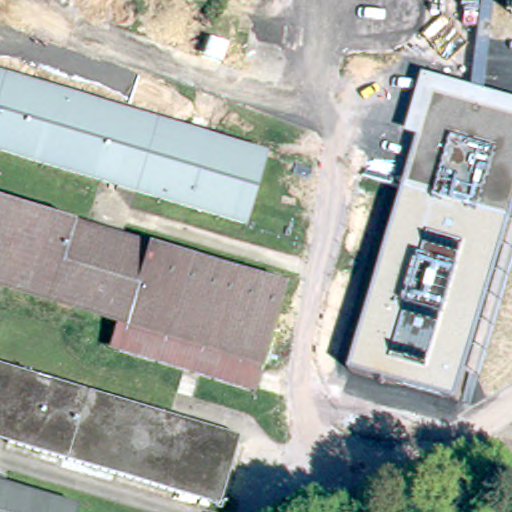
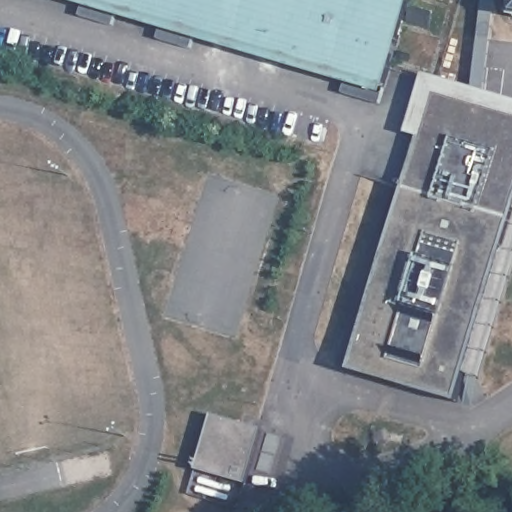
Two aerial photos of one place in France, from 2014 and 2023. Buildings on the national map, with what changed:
new [(383,93),(380,103),(344,91),(346,82),(195,38),(192,48),(158,38),(161,28),(118,15),(115,25),(81,15),(84,5),(65,0),(410,0),(383,93)]
demolished [(154,5),(128,0),(155,0),(154,5)]
unchanged [(509,0),(512,0),(512,10),(508,9),(509,0)]
demolished [(274,154),(252,225),(0,149),(0,71),(274,154)]
unchanged [(405,131),(425,71),(512,99),(512,213),(510,219),(405,184),(419,136),(405,131)]
unchanged [(455,394),(350,359),(405,184),(510,219),(455,394)]
demolished [(250,387),(117,347),(126,316),(0,278),(0,201),(284,287),(270,327),(260,357),(250,387)]
demolished [(224,429),(203,498),(0,436),(0,361),(224,429)]
new [(262,430),(249,482),(197,468),(212,417),(262,430)]
demolished [(5,484),(77,506),(75,512),(0,512),(0,472),(7,474),(5,484)]

